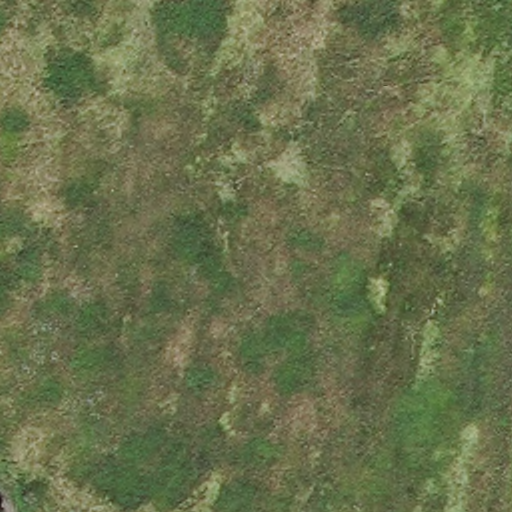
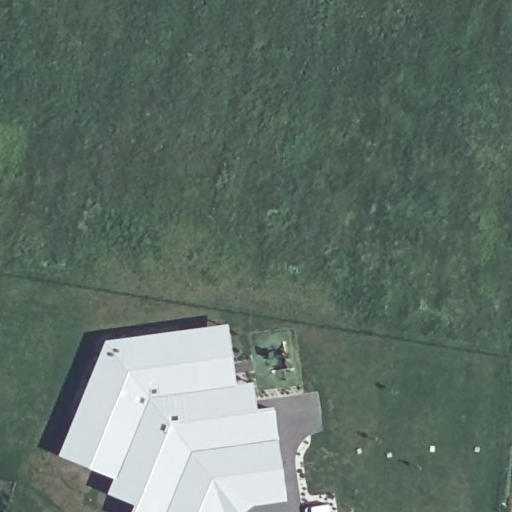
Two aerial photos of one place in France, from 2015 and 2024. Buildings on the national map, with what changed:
new [(72,426),(60,420),(96,332),(191,317),(194,332),(227,328),(234,386),(250,382),(255,416),(271,413),(282,488),(257,490),(237,492),(228,496),(218,504),(215,512),(151,512),(165,479),(122,462),(114,479),(61,458),(72,426)]

